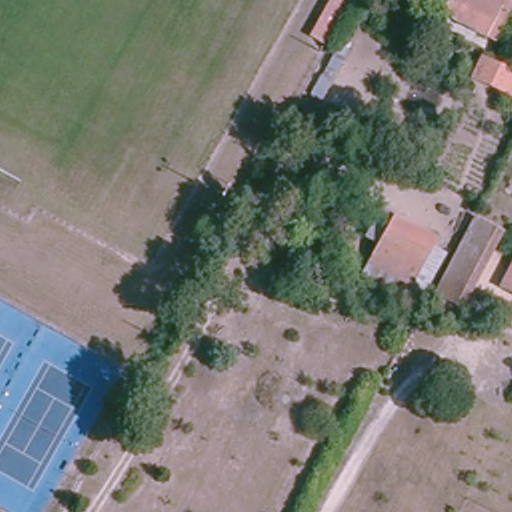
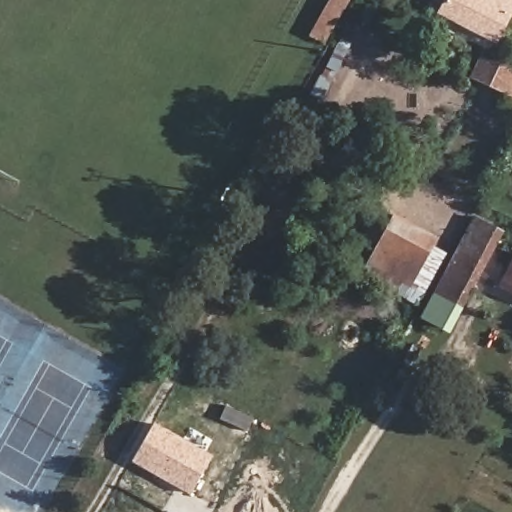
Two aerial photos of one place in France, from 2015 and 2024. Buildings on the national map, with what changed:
unchanged [(307,36),(326,7),(330,0),(345,0),(337,14),(320,44),(307,36)]
unchanged [(505,2),(486,43),(440,21),(451,0),(500,0),(505,2)]
unchanged [(320,86),(340,43),(350,49),(327,92),(320,86)]
unchanged [(485,60),(512,74),(512,90),(511,89),(507,95),(475,79),(485,60)]
unchanged [(433,245),(447,252),(420,303),(362,277),(378,244),(367,238),(381,208),(438,237),(433,245)]
unchanged [(465,309),(436,292),(476,215),(506,231),(465,309)]
unchanged [(502,287),(512,266),(512,293),(502,287)]
new [(132,461),(155,421),(213,454),(191,494),(132,461)]

